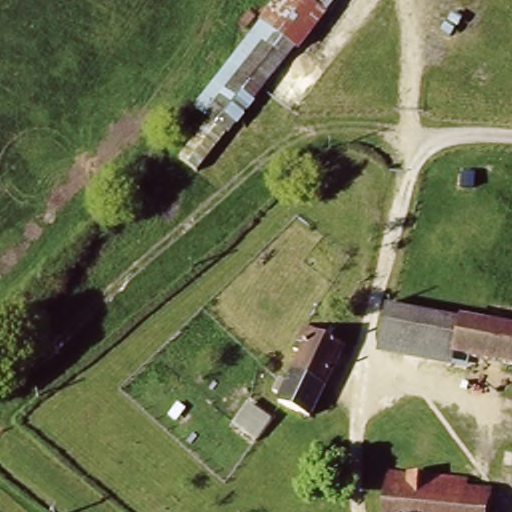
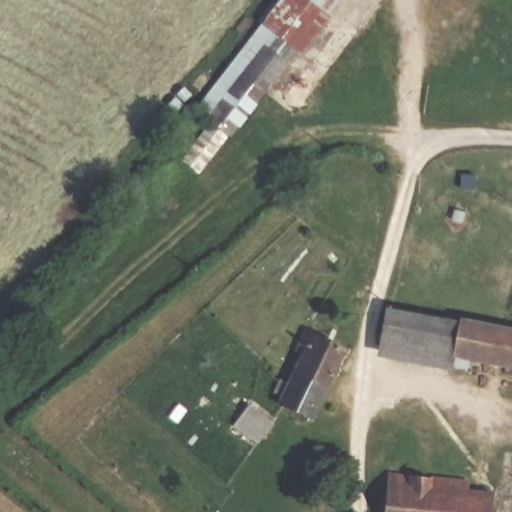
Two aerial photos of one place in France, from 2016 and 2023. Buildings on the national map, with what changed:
unchanged [(217,120),(197,107),(283,0),(349,0),(204,174),(185,160),(217,120)]
unchanged [(512,368),(452,358),(451,368),(374,359),(384,310),(512,330),(512,368)]
unchanged [(313,321),(335,331),(351,338),(312,422),(275,405),(289,375),(313,321)]
unchanged [(385,490),(389,472),(491,486),(489,512),(376,512),(370,511),(370,488),(385,490)]

